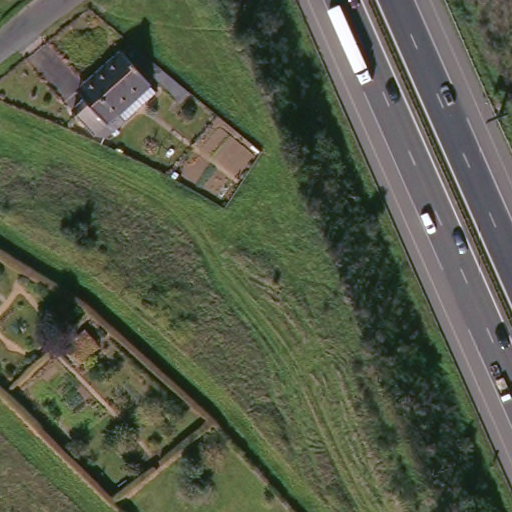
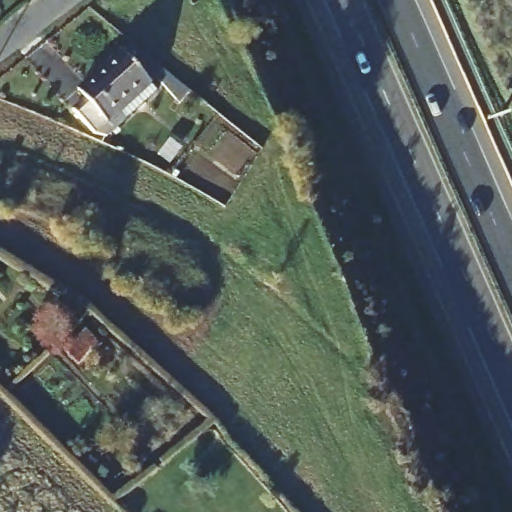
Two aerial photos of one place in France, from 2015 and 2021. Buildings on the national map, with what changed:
unchanged [(91,90),(136,52),(164,86),(133,111),(141,120),(120,138),(107,135),(87,111),(100,101),(91,90)]
unchanged [(94,360),(81,345),(99,330),(111,345),(94,360)]

